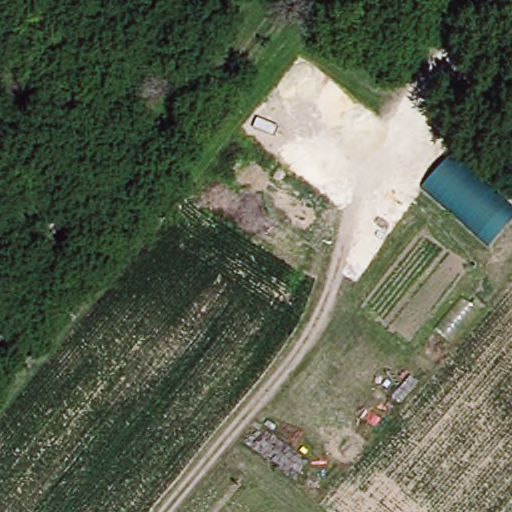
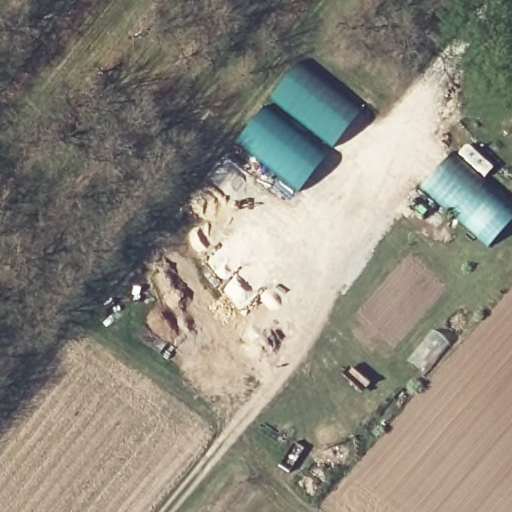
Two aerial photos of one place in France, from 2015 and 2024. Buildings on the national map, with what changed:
new [(297,60),(360,111),(332,150),(268,99),(297,60)]
new [(268,99),(332,150),(297,194),(234,142),(268,99)]
unchanged [(512,208),(512,220),(488,248),(420,189),(448,155),(512,208)]

